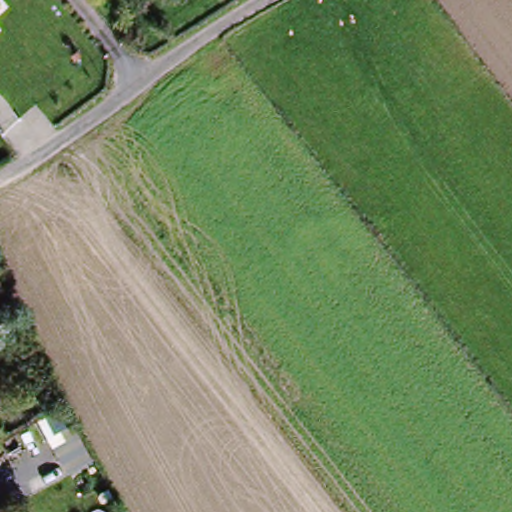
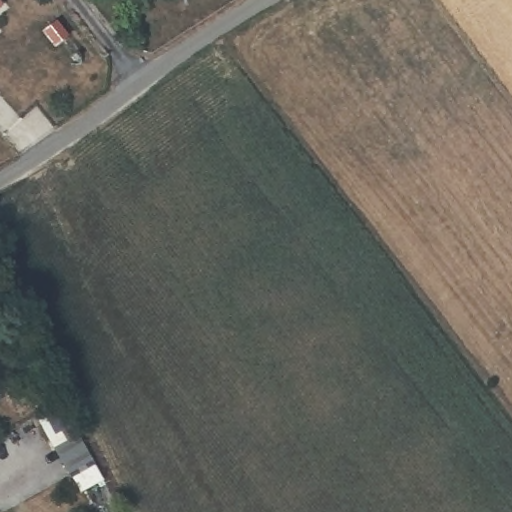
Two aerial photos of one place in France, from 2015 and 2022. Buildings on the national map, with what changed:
unchanged [(0,9),(0,5),(2,7),(0,9)]

